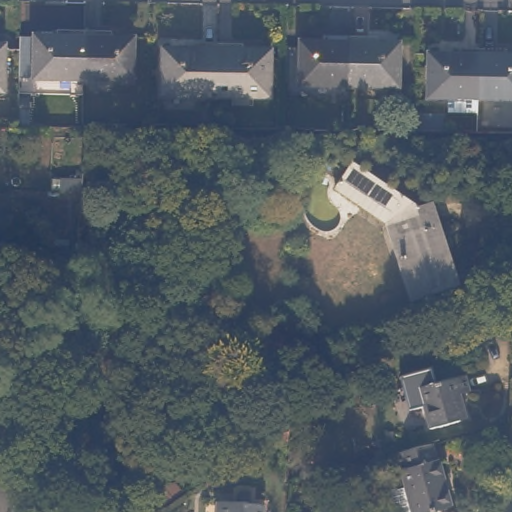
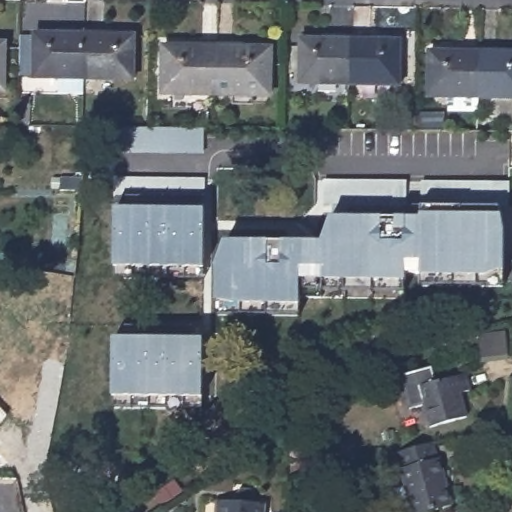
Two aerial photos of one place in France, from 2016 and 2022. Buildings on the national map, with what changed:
unchanged [(79,74),(31,72),(32,30),(79,31),(79,74)]
unchanged [(130,32),(129,75),(79,74),(79,31),(130,32)]
unchanged [(350,81),(299,79),(301,37),(351,38),(350,81)]
unchanged [(4,87),(0,86),(0,38),(6,39),(4,87)]
unchanged [(400,40),(398,82),(350,81),(351,38),(400,40)]
unchanged [(211,90),(160,89),(161,44),(212,45),(211,90)]
unchanged [(264,46),(263,92),(211,90),(212,45),(264,46)]
unchanged [(483,94),(434,93),(435,50),(484,50),(483,94)]
unchanged [(512,50),(512,94),(483,94),(484,50),(512,50)]
new [(116,152),(117,127),(203,130),(204,153),(116,152)]
demolished [(398,216),(345,185),(357,163),(427,205),(437,201),(462,281),(422,295),(398,216)]
new [(119,199),(120,175),(206,177),(205,202),(119,199)]
new [(325,179),(407,181),(406,205),(323,204),(325,179)]
new [(420,205),(421,181),(510,181),(510,207),(500,206),(425,207),(420,205)]
new [(206,207),(205,268),(114,267),(115,206),(206,207)]
new [(328,216),(420,217),(422,214),(422,207),(425,207),(500,206),(502,216),(506,235),(506,270),(503,270),(505,286),(423,285),(422,276),(407,276),(407,282),(407,291),(302,287),(302,305),(300,305),(300,315),(214,312),(214,302),(216,266),(225,240),(320,241),(328,216)]
new [(204,337),(204,397),(113,397),(112,336),(204,337)]
new [(416,385),(421,405),(408,408),(402,375),(432,366),(435,379),(416,385)]
unchanged [(461,372),(466,388),(456,391),(462,416),(427,426),(416,385),(461,372)]
unchanged [(430,442),(433,457),(437,457),(450,502),(415,512),(392,512),(387,490),(401,486),(396,468),(400,467),(396,452),(430,442)]
unchanged [(303,447),(302,462),(286,461),(287,446),(303,447)]
unchanged [(266,500),(265,512),(219,512),(221,498),(266,500)]
unchanged [(72,503),(73,512),(57,512),(56,507),(72,503)]

